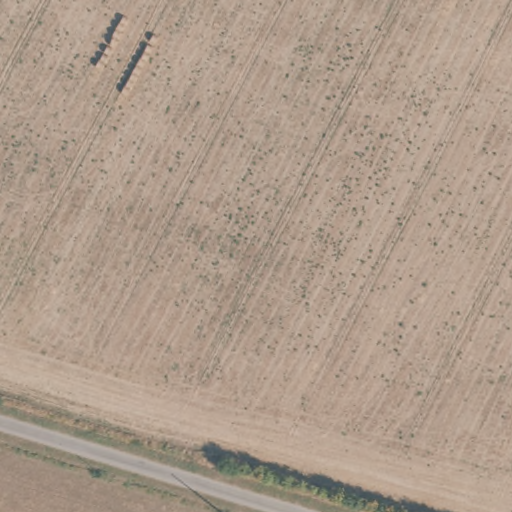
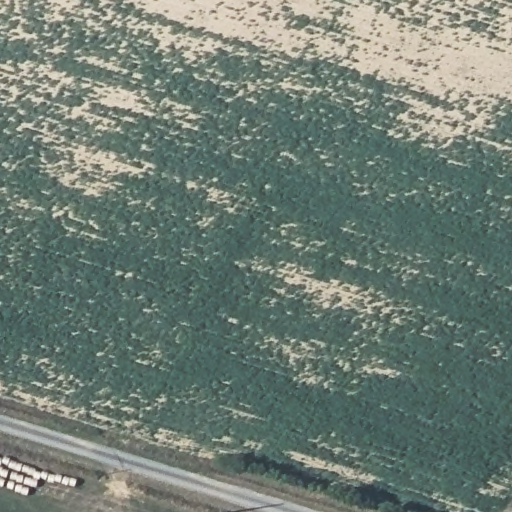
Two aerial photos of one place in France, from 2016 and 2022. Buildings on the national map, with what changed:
[]

